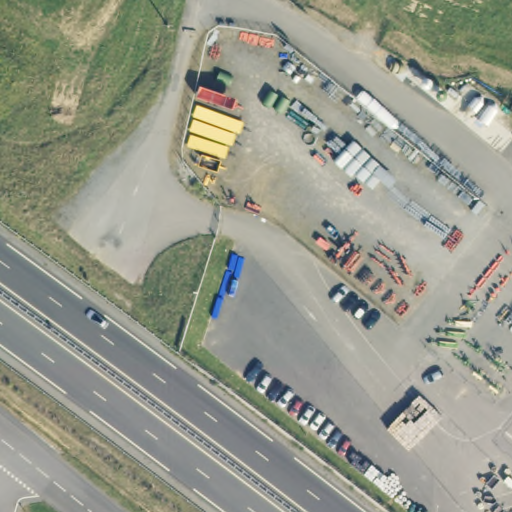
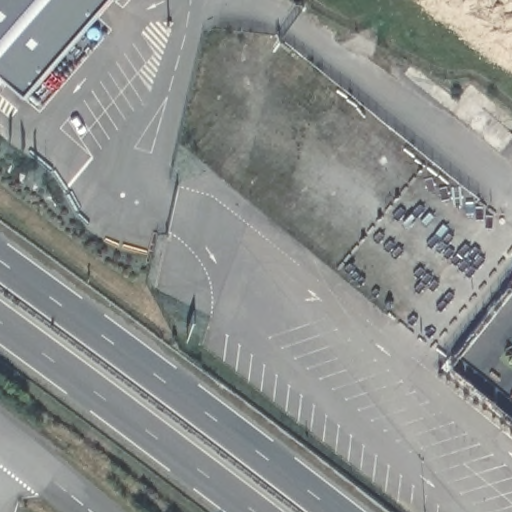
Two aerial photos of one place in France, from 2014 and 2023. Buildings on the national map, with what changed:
new [(0,78),(0,0),(112,0),(25,100),(0,78)]

